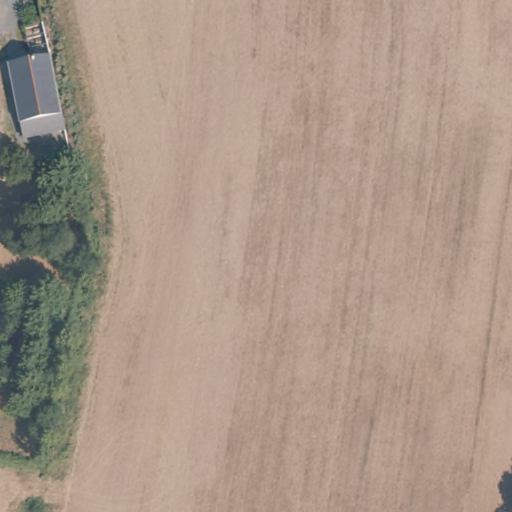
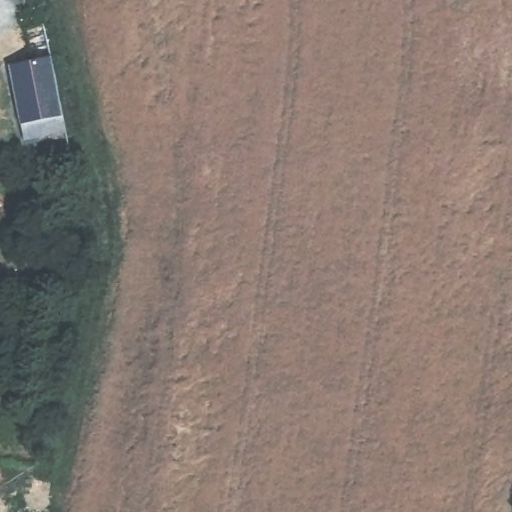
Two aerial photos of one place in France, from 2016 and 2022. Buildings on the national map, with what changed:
unchanged [(49,60),(65,135),(25,144),(9,67),(49,60)]

